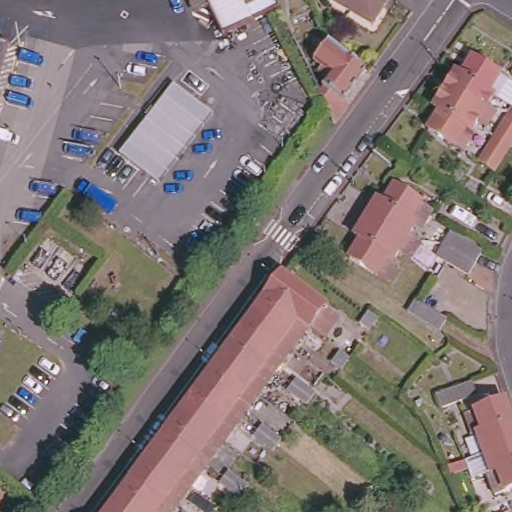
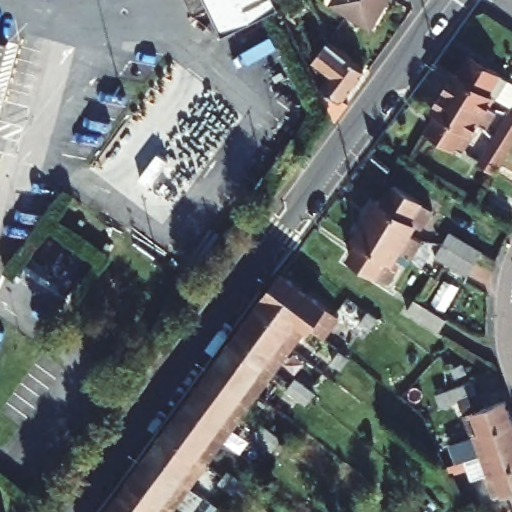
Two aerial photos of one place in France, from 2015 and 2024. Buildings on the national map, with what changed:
unchanged [(197,0),(267,0),(272,10),(215,36),(197,0)]
unchanged [(339,0),(384,0),(372,20),(339,0)]
unchanged [(327,74),(317,64),(319,61),(313,55),(327,33),(330,35),(363,62),(342,92),(347,97),(335,115),(320,84),(327,74)]
unchanged [(9,41),(0,71),(0,39),(9,41)]
unchanged [(509,106),(492,96),(489,95),(484,104),(494,110),(483,107),(465,95),(472,84),(457,74),(467,56),(503,79),(512,84),(512,132),(504,145),(490,170),(475,160),(490,136),(505,112),(509,106)]
unchanged [(484,128),(482,126),(475,117),(457,106),(450,119),(434,110),(429,106),(450,70),(457,74),(472,84),(465,95),(483,107),(494,110),(484,128)]
unchanged [(512,73),(512,78),(510,76),(512,73)]
demolished [(172,82),(211,113),(157,185),(119,154),(172,82)]
unchanged [(450,119),(457,106),(475,117),(482,126),(473,120),(467,130),(470,133),(457,151),(422,127),(434,110),(450,119)]
unchanged [(400,229),(392,224),(383,218),(390,206),(389,205),(374,196),(385,180),(422,202),(412,215),(408,213),(401,226),(407,230),(400,229)]
unchanged [(368,192),(374,196),(389,205),(390,206),(383,218),(392,224),(400,229),(407,230),(410,233),(400,250),(397,248),(392,241),(390,240),(389,240),(375,230),(371,237),(367,244),(352,235),(350,234),(344,230),(367,192),(368,192)]
unchanged [(390,243),(382,254),(387,257),(377,271),(367,263),(365,265),(342,250),(352,235),(367,244),(371,237),(375,230),(389,240),(390,240),(392,241),(397,248),(390,243)]
unchanged [(453,236),(482,255),(475,266),(469,277),(439,258),(445,248),(453,236)]
unchanged [(275,267),(332,310),(315,332),(307,326),(300,320),(259,290),(275,267)]
unchanged [(415,300),(417,296),(420,292),(422,288),(452,311),(449,316),(445,322),(415,300)]
unchanged [(284,342),(242,312),(259,290),(300,320),(284,342)]
unchanged [(376,315),(367,325),(359,318),(367,307),(376,315)]
unchanged [(242,312),(284,342),(267,365),(226,335),(242,312)]
unchanged [(251,386),(210,356),(226,335),(267,365),(251,386)]
unchanged [(347,357),(338,368),(329,361),(337,350),(347,357)]
unchanged [(235,408),(194,378),(210,356),(251,386),(235,408)]
unchanged [(473,375),(476,385),(477,388),(440,401),(437,388),(462,380),(473,375)]
unchanged [(284,387),(288,382),(292,376),(312,390),(307,396),(302,401),(284,387)]
unchanged [(217,432),(177,401),(194,378),(235,408),(217,432)]
unchanged [(467,423),(460,404),(501,390),(512,420),(512,432),(480,443),(472,421),(467,423)]
unchanged [(200,455),(160,424),(177,401),(217,432),(200,455)]
unchanged [(252,431),(256,425),(260,420),(279,434),(275,440),(270,445),(252,431)]
unchanged [(184,478),(143,447),(160,424),(200,455),(184,478)]
unchanged [(512,478),(487,486),(481,465),(486,463),(480,443),(512,432),(512,478)]
unchanged [(167,501),(127,470),(143,447),(184,478),(167,501)]
unchanged [(225,466),(245,481),(240,487),(237,492),(217,477),(222,472),(225,466)]
unchanged [(159,512),(135,512),(110,493),(127,470),(167,501),(159,512)]
unchanged [(110,493),(135,512),(96,512),(110,493)]

